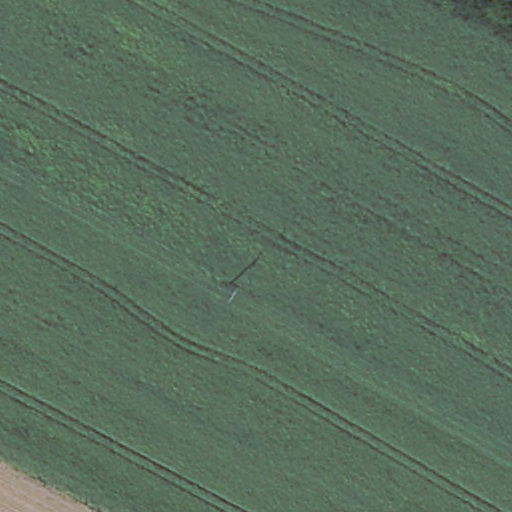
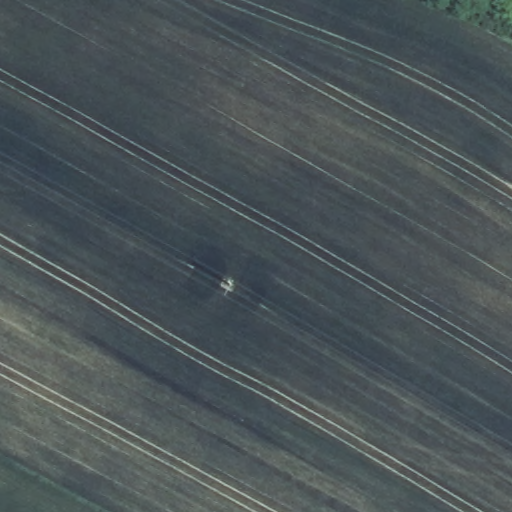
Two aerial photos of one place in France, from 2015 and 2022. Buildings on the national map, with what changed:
[]

